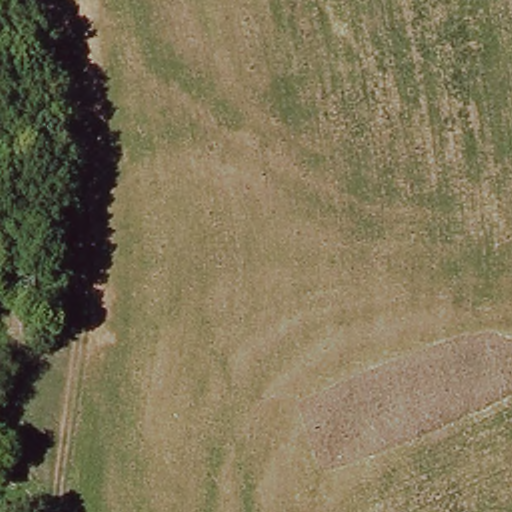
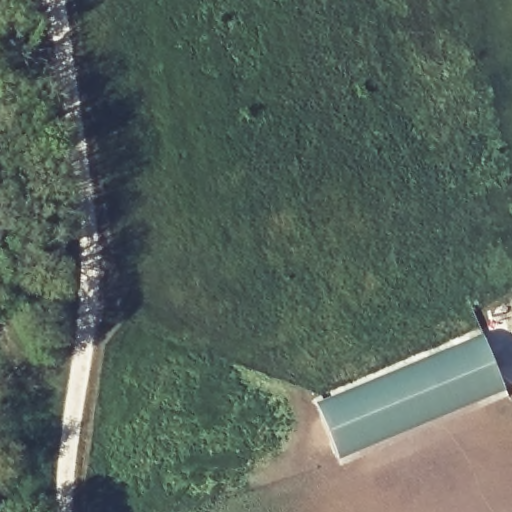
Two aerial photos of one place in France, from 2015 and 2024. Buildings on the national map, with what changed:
new [(484,332),(509,390),(343,461),(318,404),(484,332)]

